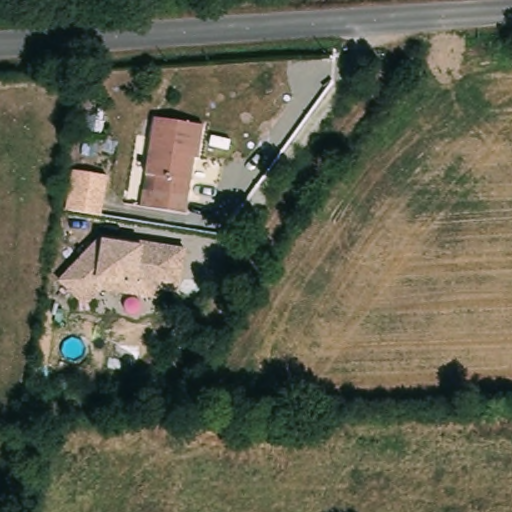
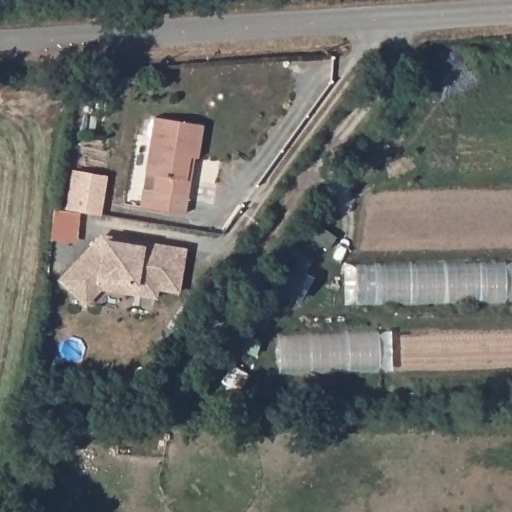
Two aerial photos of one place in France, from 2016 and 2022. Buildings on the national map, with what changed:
unchanged [(145,208),(135,207),(140,174),(149,117),(198,125),(193,158),(189,158),(186,180),(182,198),(176,197),(174,213),(145,208)]
unchanged [(65,208),(72,170),(108,176),(101,216),(65,208)]
unchanged [(177,300),(104,289),(86,307),(59,281),(100,237),(103,240),(139,246),(140,241),(186,249),(177,300)]
new [(354,263),(505,261),(505,303),(355,305),(354,263)]
new [(278,376),(276,332),(378,329),(379,373),(278,376)]

